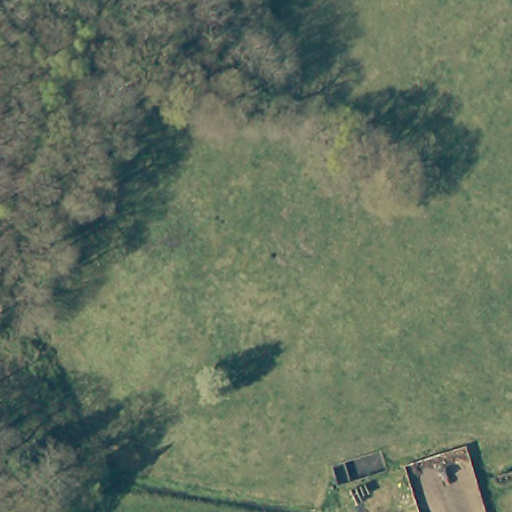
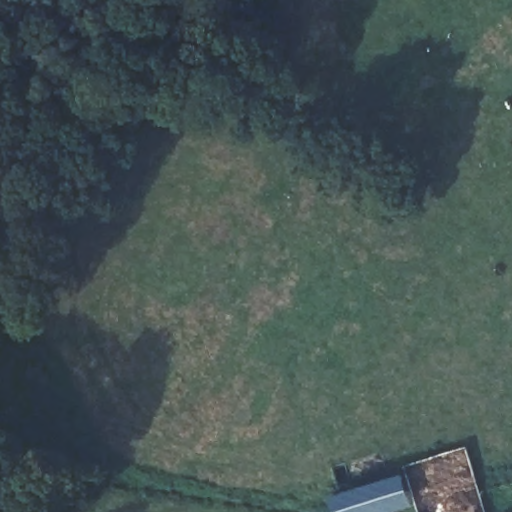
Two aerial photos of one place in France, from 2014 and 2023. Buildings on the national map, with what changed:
new [(330,497),(401,474),(411,506),(393,512),(334,512),(330,497)]

